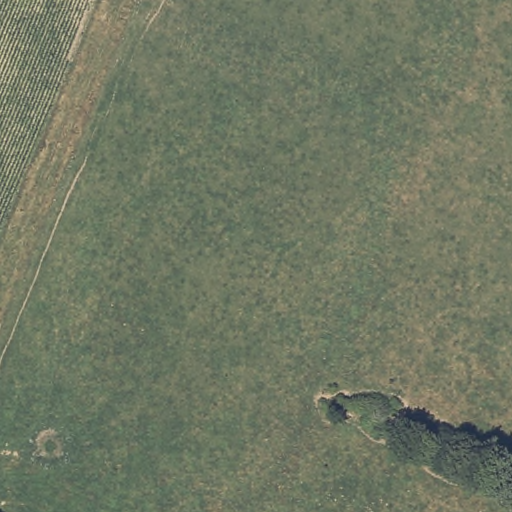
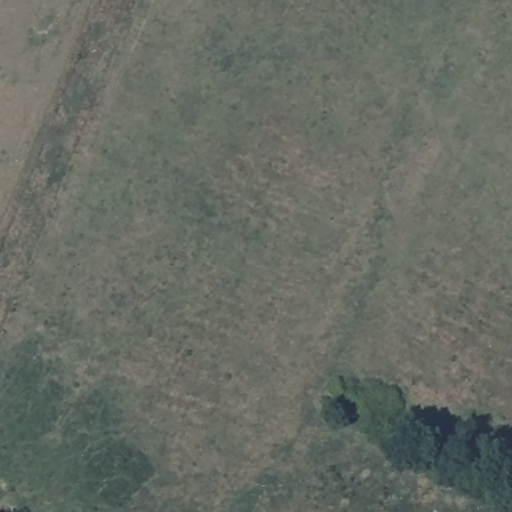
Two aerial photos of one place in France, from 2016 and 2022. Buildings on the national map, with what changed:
[]

